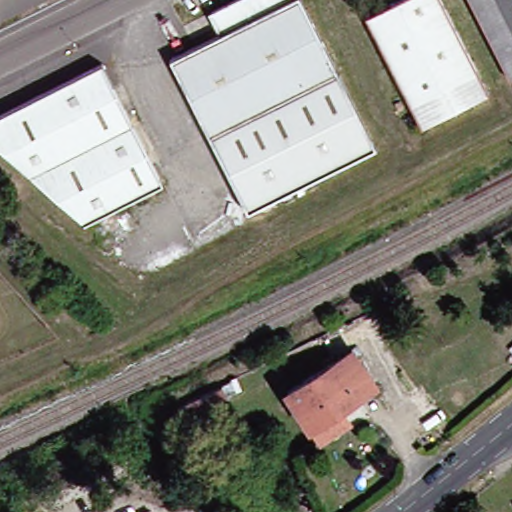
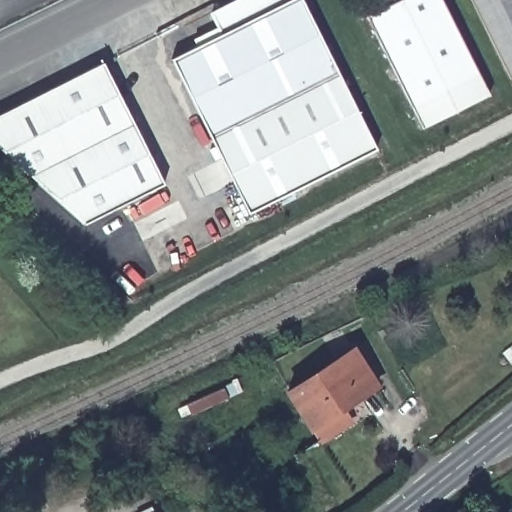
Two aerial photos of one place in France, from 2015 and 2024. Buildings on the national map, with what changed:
unchanged [(215,37),(205,16),(236,0),(294,0),(371,152),(242,217),(165,62),(215,37)]
unchanged [(412,119),(366,28),(423,0),(435,0),(479,86),(412,119)]
unchanged [(512,75),(512,80),(505,83),(463,0),(474,0),(484,18),(512,75)]
unchanged [(512,75),(484,18),(474,0),(512,0),(512,75)]
unchanged [(90,73),(102,67),(163,186),(150,192),(84,225),(0,152),(0,118),(90,73)]
unchanged [(314,444),(306,432),(282,395),(349,353),(372,389),(337,411),(346,424),(314,444)]
unchanged [(186,416),(182,407),(218,391),(222,400),(186,416)]

